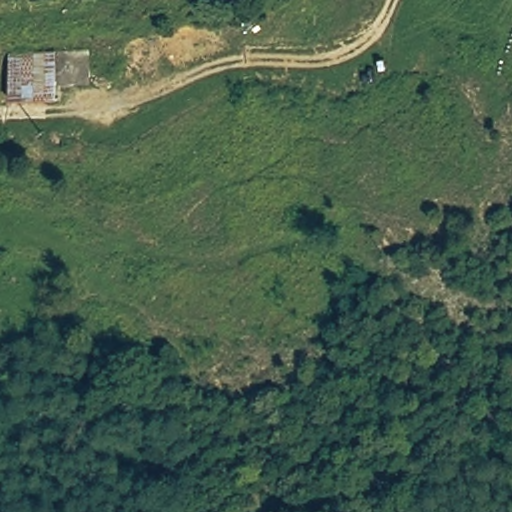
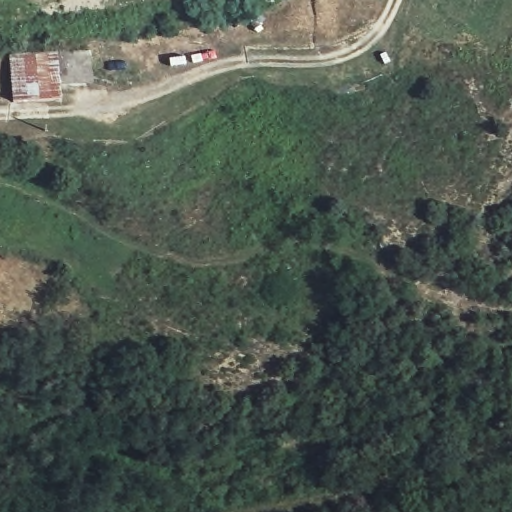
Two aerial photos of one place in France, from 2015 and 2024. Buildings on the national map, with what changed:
unchanged [(17,61),(66,54),(96,55),(97,87),(65,89),(65,104),(17,109),(17,61)]

